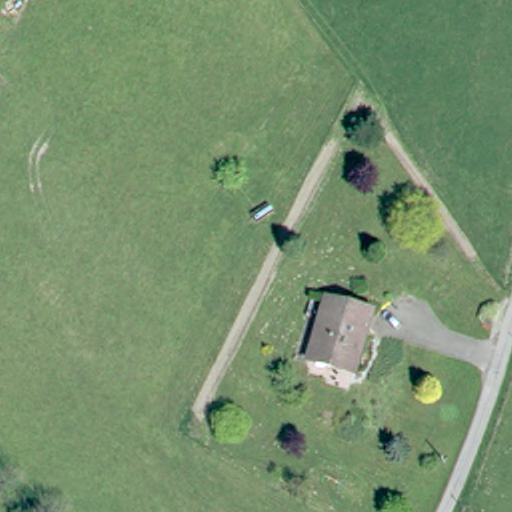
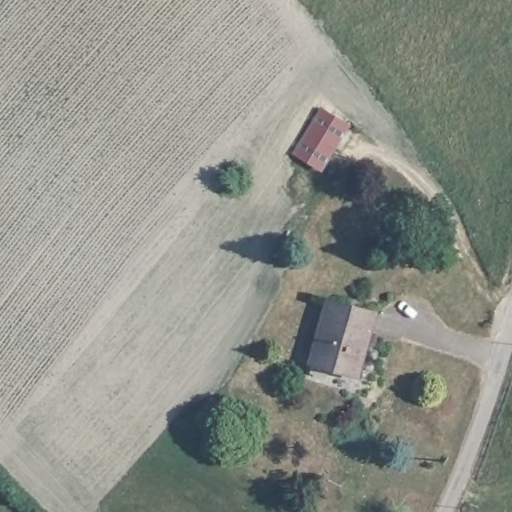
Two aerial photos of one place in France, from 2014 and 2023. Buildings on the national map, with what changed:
new [(320,106),(350,124),(322,172),(292,154),(320,106)]
unchanged [(311,361),(327,303),(374,316),(357,379),(336,374),(310,367),(311,361)]

